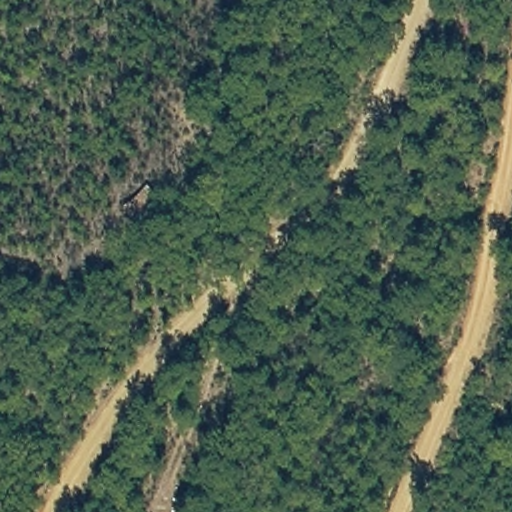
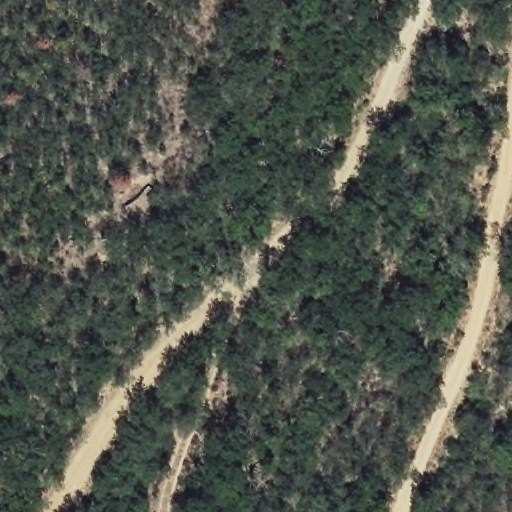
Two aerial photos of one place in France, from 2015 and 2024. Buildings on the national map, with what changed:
unchanged [(125,207),(152,179),(174,202),(146,229),(125,207)]

